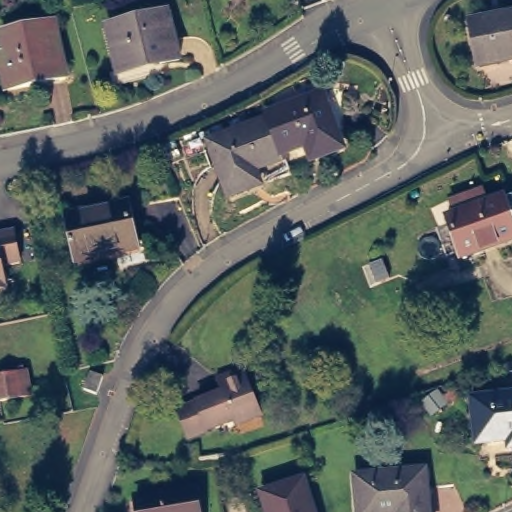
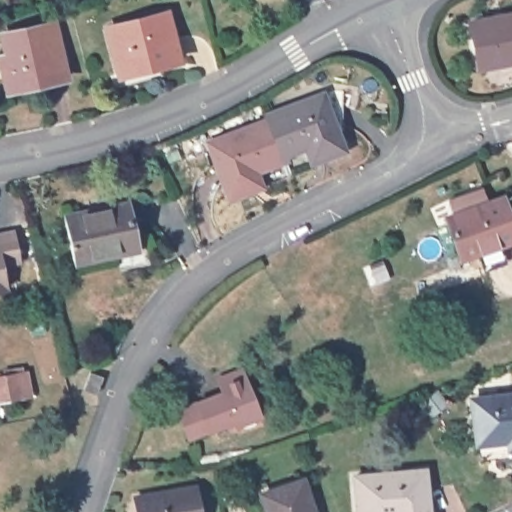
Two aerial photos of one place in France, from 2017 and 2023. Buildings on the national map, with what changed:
unchanged [(173,4),(185,51),(168,56),(168,54),(125,64),(119,39),(122,38),(116,18),(173,4)]
unchanged [(512,10),(512,55),(479,56),(477,11),(512,10)]
unchanged [(15,50),(12,30),(63,19),(73,75),(15,87),(11,64),(9,51),(15,50)]
unchanged [(324,100),(338,153),(315,159),(312,148),(279,157),(268,120),(267,115),(324,100)]
unchanged [(279,157),(280,161),(240,172),(245,187),(222,193),(207,137),(268,120),(279,157)]
unchanged [(505,195),(505,197),(512,194),(512,216),(512,238),(463,255),(448,214),(505,195)]
unchanged [(125,197),(133,234),(140,233),(142,247),(71,263),(60,212),(125,197)]
unchanged [(28,257),(10,260),(15,285),(0,288),(0,228),(22,224),(28,257)]
unchanged [(395,265),(407,297),(380,307),(367,275),(395,265)]
unchanged [(22,373),(25,396),(6,399),(2,376),(22,373)]
unchanged [(227,398),(221,383),(247,373),(263,414),(192,441),(182,414),(227,398)]
unchanged [(92,383),(103,388),(97,403),(85,398),(92,383)]
unchanged [(512,391),(512,443),(510,443),(509,435),(508,432),(500,433),(500,436),(477,439),(472,396),(512,391)]
unchanged [(445,403),(455,415),(440,427),(431,414),(445,403)]
unchanged [(390,509),(365,512),(355,512),(350,469),(420,463),(425,512),(391,512),(390,509)]
unchanged [(135,488),(192,479),(198,512),(140,512),(135,488)]
unchanged [(299,479),(310,512),(265,512),(258,492),(299,479)]

